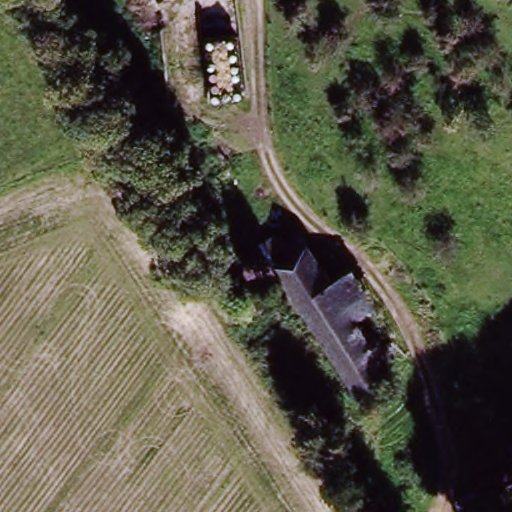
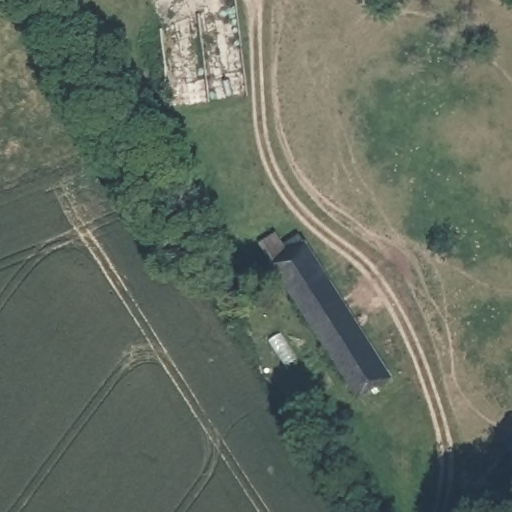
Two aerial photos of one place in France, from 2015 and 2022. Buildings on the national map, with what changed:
unchanged [(388,380),(362,396),(264,247),(277,239),(287,252),(304,241),(331,289),(385,376),(388,380)]
unchanged [(385,376),(331,289),(354,275),(407,362),(385,376)]
unchanged [(485,506),(512,490),(512,512),(489,512),(485,506)]

